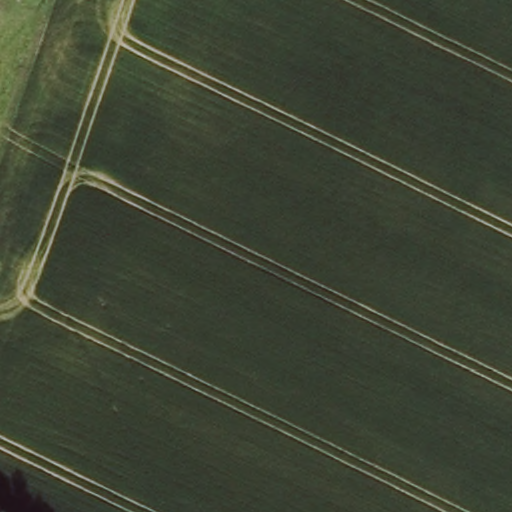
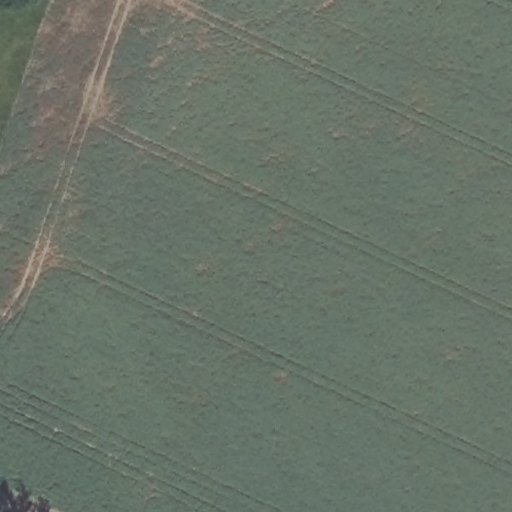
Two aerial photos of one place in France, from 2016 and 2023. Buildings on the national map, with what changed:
[]

